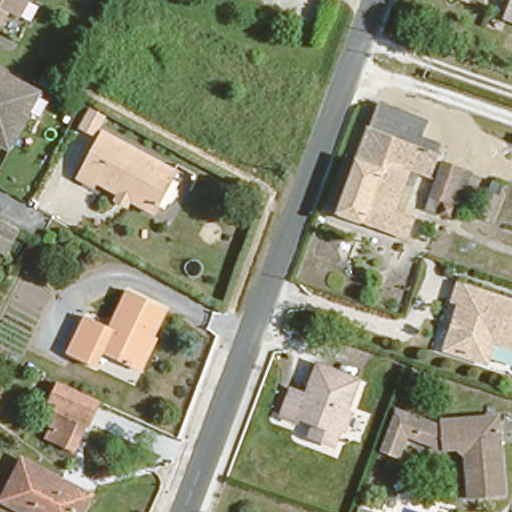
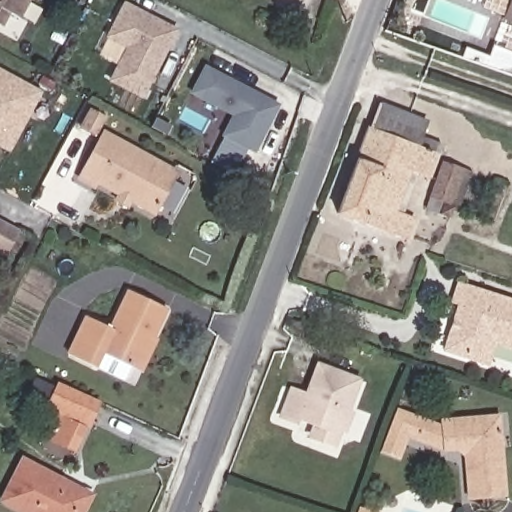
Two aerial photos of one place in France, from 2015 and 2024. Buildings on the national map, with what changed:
unchanged [(0,20),(0,19),(0,0),(21,0),(15,12),(7,8),(0,20)]
unchanged [(512,21),(502,17),(509,0),(512,0),(512,21)]
new [(127,3),(178,30),(144,96),(113,80),(130,46),(110,36),(127,3)]
new [(204,65),(281,104),(255,155),(221,136),(231,116),(189,93),(204,65)]
unchanged [(0,140),(0,67),(36,85),(7,144),(0,140)]
unchanged [(392,205),(411,213),(404,232),(342,210),(382,100),(427,117),(422,130),(440,137),(437,146),(439,147),(431,170),(414,164),(411,170),(406,169),(392,205)]
unchanged [(88,125),(96,106),(109,112),(101,130),(88,125)]
unchanged [(105,181),(102,189),(86,180),(110,132),(182,169),(162,210),(105,181)]
unchanged [(440,156),(470,165),(456,206),(426,195),(440,156)]
unchanged [(2,251),(0,250),(0,223),(13,230),(2,251)]
unchanged [(478,371),(443,359),(448,342),(457,338),(459,331),(453,329),(459,314),(449,310),(460,278),(512,297),(512,358),(487,350),(478,371)]
unchanged [(96,345),(87,360),(65,349),(85,312),(107,323),(126,286),(159,305),(129,361),(96,345)]
unchanged [(314,437),(318,423),(296,414),(293,421),(277,415),(291,380),(306,386),(318,357),(359,373),(333,445),(314,437)]
unchanged [(59,410),(47,403),(58,375),(103,397),(73,450),(48,438),(59,410)]
unchanged [(445,448),(409,435),(399,455),(379,446),(396,406),(441,422),(445,448)]
unchanged [(497,408),(509,491),(466,492),(462,447),(445,448),(441,422),(439,412),(497,408)]
unchanged [(79,512),(28,512),(4,501),(0,499),(0,497),(19,458),(23,460),(89,492),(79,512)]

